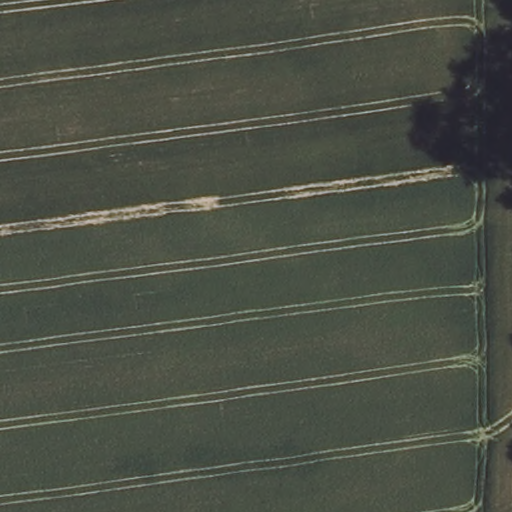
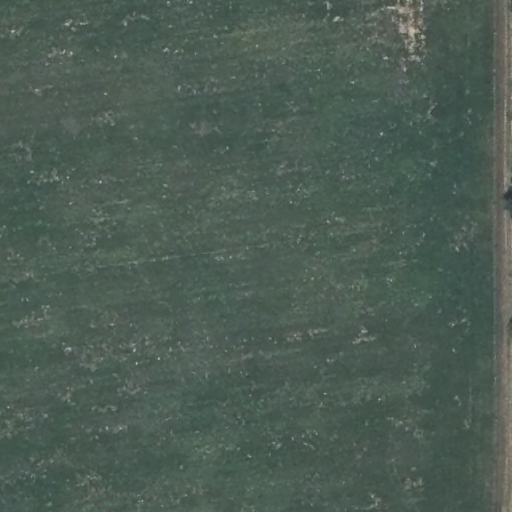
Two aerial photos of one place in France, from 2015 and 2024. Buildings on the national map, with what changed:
[]

